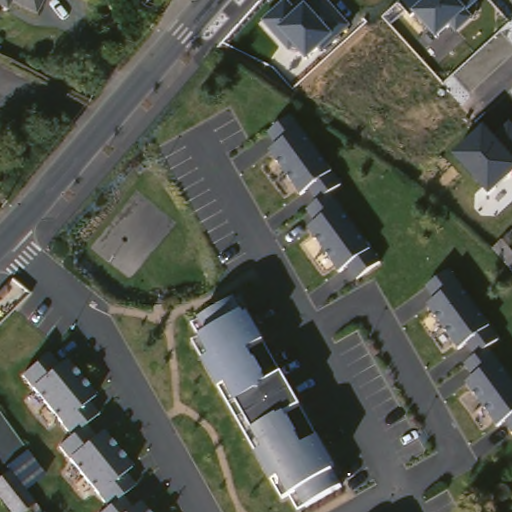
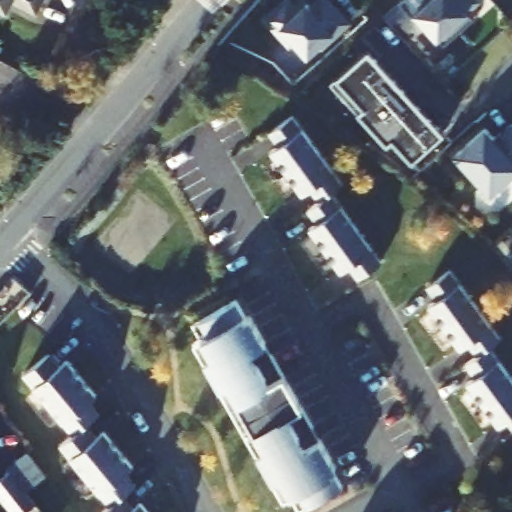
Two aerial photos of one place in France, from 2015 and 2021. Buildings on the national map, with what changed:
unchanged [(10,4),(0,23),(0,0),(18,0),(14,6),(10,4)]
unchanged [(31,0),(49,0),(45,7),(31,0)]
unchanged [(294,46),(289,51),(263,20),(286,0),(288,0),(297,10),(306,2),(308,5),(314,0),(327,0),(350,22),(307,59),(294,46)]
unchanged [(474,20),(456,33),(450,26),(435,37),(414,15),(411,17),(399,2),(402,0),(480,0),(480,1),(466,10),(474,20)]
new [(392,140),(386,144),(360,112),(331,84),(338,78),(368,51),(442,134),(412,160),(392,140)]
unchanged [(385,266),(358,288),(311,224),(319,215),(272,152),(283,142),(275,129),(298,117),(345,187),(335,195),(385,266)]
unchanged [(454,155),(483,127),(494,137),(509,123),(512,125),(512,176),(489,196),(454,155)]
unchanged [(511,240),(512,241),(512,259),(503,247),(511,240)]
unchanged [(512,434),(510,436),(461,381),(477,367),(422,295),(451,272),(504,342),(489,353),(512,381),(512,434)]
unchanged [(186,337),(234,296),(346,486),(302,512),(293,512),(186,337)]
unchanged [(92,508),(103,497),(72,470),(78,461),(61,448),(74,429),(35,400),(42,388),(32,381),(49,360),(59,366),(98,390),(92,402),(101,412),(87,432),(96,447),(103,440),(133,463),(127,477),(134,488),(127,498),(137,511),(144,507),(149,512),(96,512),(92,508)]
unchanged [(43,505),(34,512),(21,512),(0,485),(18,471),(43,505)]

